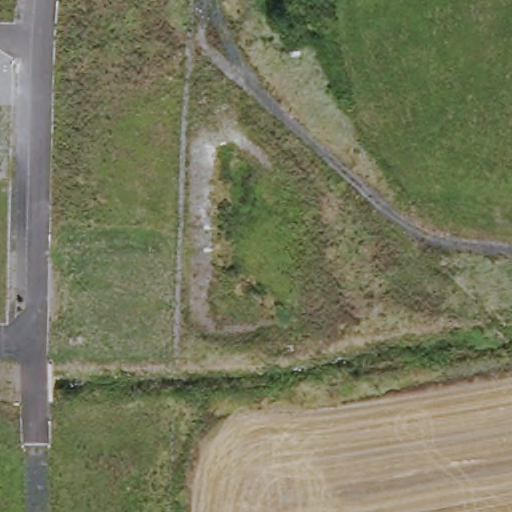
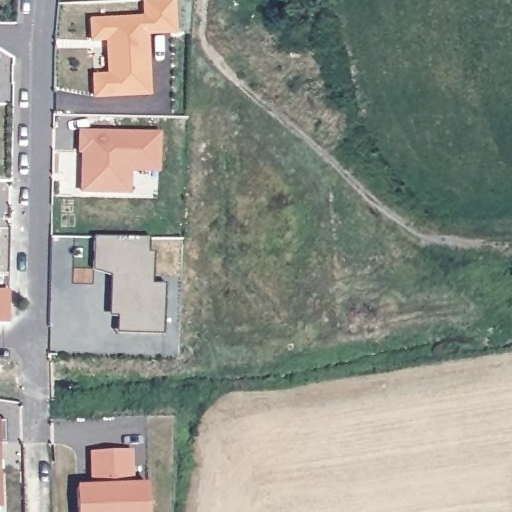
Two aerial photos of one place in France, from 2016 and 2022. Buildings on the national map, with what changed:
new [(159,0),(174,0),(175,34),(146,35),(149,96),(95,98),(94,77),(112,77),(111,41),(92,41),(91,22),(145,19),(144,1),(159,0)]
new [(159,136),(157,172),(130,172),(128,194),(82,192),(82,167),(86,164),(87,153),(80,153),(80,133),(159,136)]
new [(117,313),(120,271),(93,270),(94,237),(149,239),(148,253),(153,254),(152,285),(165,286),(163,330),(163,337),(116,335),(117,313),(125,313),(117,313)]
new [(7,443),(0,444),(0,421),(6,421),(7,443)]
new [(92,452),(131,451),(132,487),(93,488),(92,452)]
new [(0,508),(0,482),(1,508),(0,508)]
new [(149,512),(78,512),(77,488),(148,486),(149,512)]

